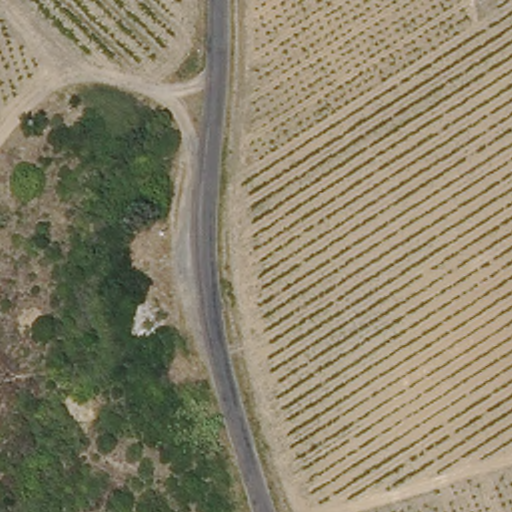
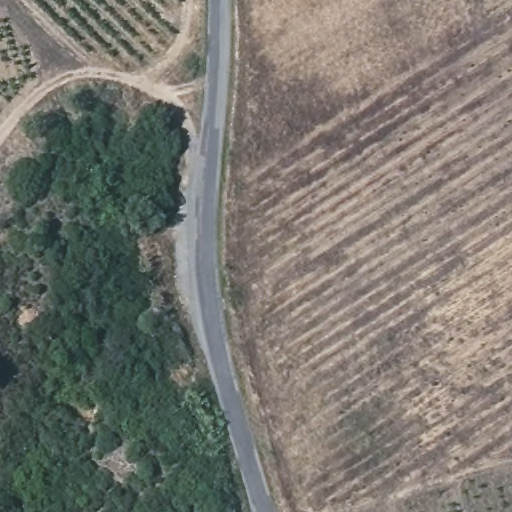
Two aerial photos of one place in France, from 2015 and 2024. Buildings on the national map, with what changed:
[]

